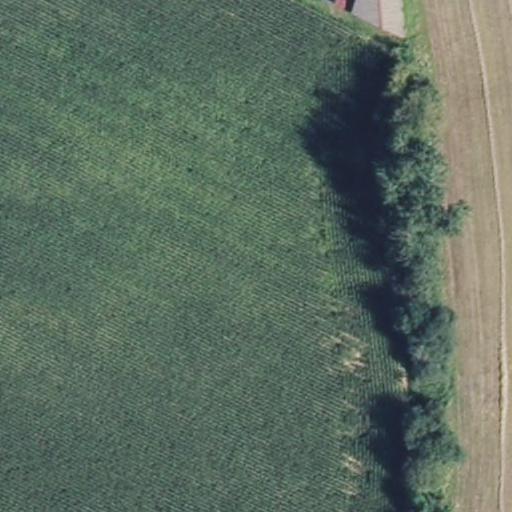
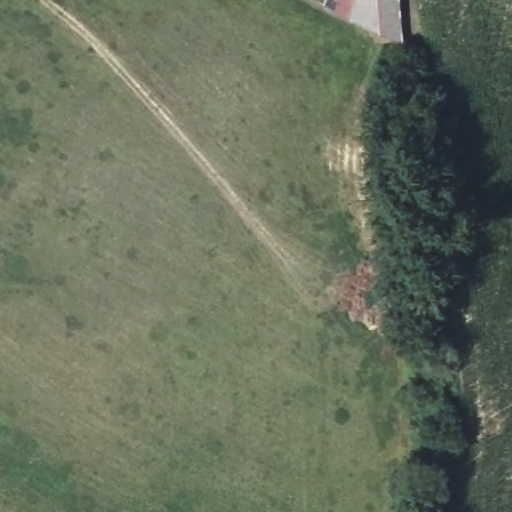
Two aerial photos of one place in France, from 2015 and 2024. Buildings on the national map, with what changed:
unchanged [(405,42),(357,20),(363,6),(362,0),(401,0),(405,42)]

